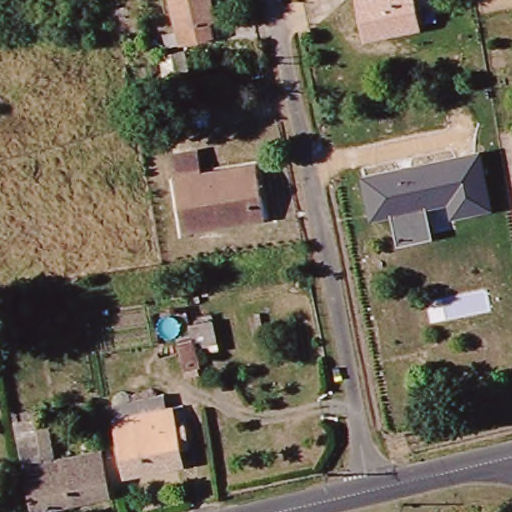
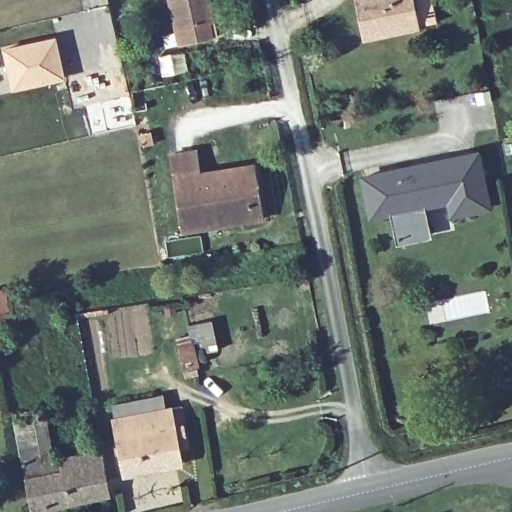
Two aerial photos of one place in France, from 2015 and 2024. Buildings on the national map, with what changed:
unchanged [(123,1),(127,22),(114,25),(110,0),(131,0),(131,1),(123,1)]
unchanged [(207,22),(211,37),(173,46),(163,0),(207,0),(212,21),(207,22)]
unchanged [(361,37),(353,0),(406,0),(412,26),(361,37)]
new [(56,35),(66,79),(9,91),(0,46),(56,35)]
unchanged [(431,236),(395,243),(390,214),(370,217),(361,175),(480,150),(491,208),(450,216),(447,203),(425,205),(431,236)]
unchanged [(252,165),(260,221),(175,234),(167,176),(252,165)]
unchanged [(199,367),(195,348),(190,324),(210,320),(215,345),(206,346),(210,365),(199,367)]
unchanged [(0,352),(0,328),(4,328),(7,351),(0,352)]
unchanged [(171,410),(182,464),(120,474),(110,414),(109,406),(159,396),(161,403),(163,411),(171,410)]
unchanged [(16,431),(35,428),(37,440),(19,443),(16,431)]
unchanged [(26,510),(16,455),(30,451),(31,463),(97,453),(105,495),(26,510)]

